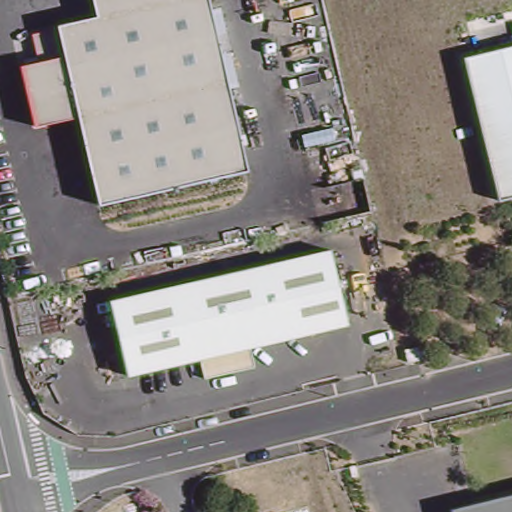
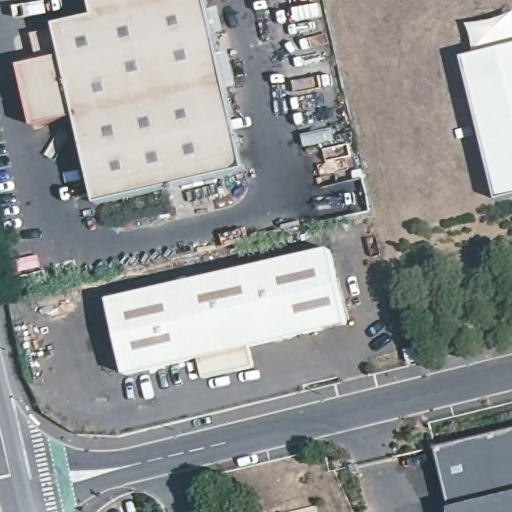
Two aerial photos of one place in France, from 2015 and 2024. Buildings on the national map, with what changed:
unchanged [(95,206),(76,119),(32,128),(19,65),(37,61),(31,31),(93,16),(90,0),(207,0),(245,170),(95,206)]
unchanged [(461,57),(512,45),(512,197),(497,201),(461,57)]
unchanged [(221,374),(206,377),(202,357),(129,373),(112,300),(314,254),(331,328),(233,350),(238,370),(221,374)]
new [(435,448),(512,430),(512,493),(448,508),(435,448)]
unchanged [(448,508),(512,493),(512,512),(449,512),(448,508)]

